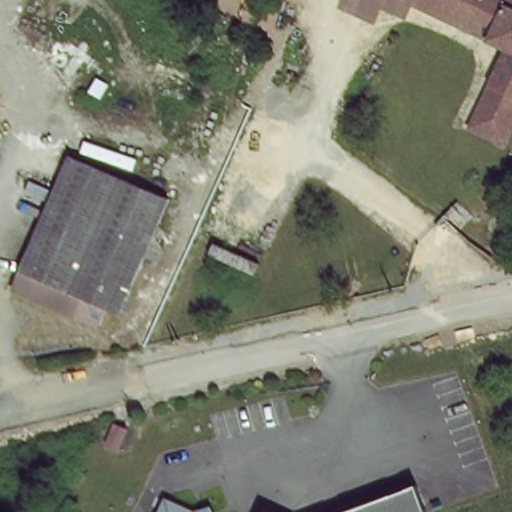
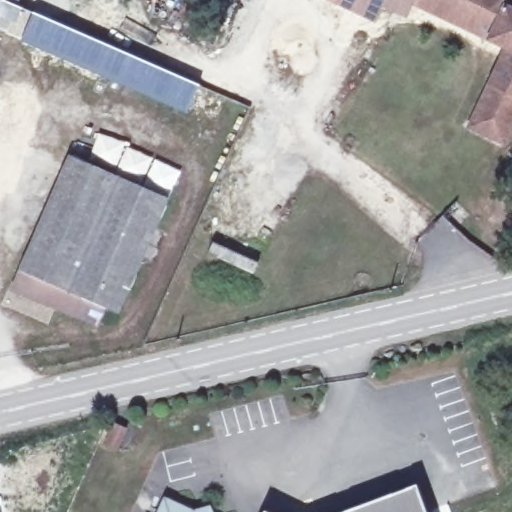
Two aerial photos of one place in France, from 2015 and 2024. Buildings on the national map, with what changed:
new [(14,23),(0,17),(0,0),(1,0),(22,9),(14,23)]
new [(337,7),(340,0),(377,0),(377,1),(382,4),(375,24),(337,7)]
unchanged [(410,0),(410,1),(412,1),(409,7),(407,6),(403,13),(377,1),(377,0),(410,0)]
unchanged [(511,42),(412,1),(410,1),(410,0),(436,0),(512,38),(512,129),(510,135),(478,122),(511,42)]
unchanged [(436,0),(512,0),(512,38),(436,0)]
new [(20,42),(32,13),(198,86),(187,113),(20,42)]
unchanged [(82,293),(75,308),(16,280),(73,149),(169,194),(119,310),(82,293)]
unchanged [(412,489),(420,512),(348,512),(412,489)]
unchanged [(157,494),(187,506),(185,512),(149,512),(157,494)]
unchanged [(258,508),(269,512),(257,512),(258,508)]

